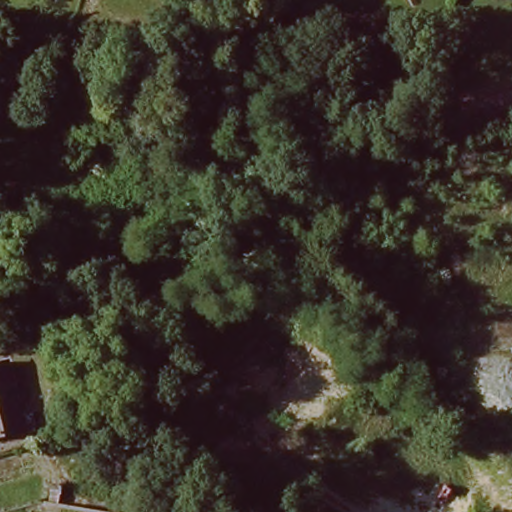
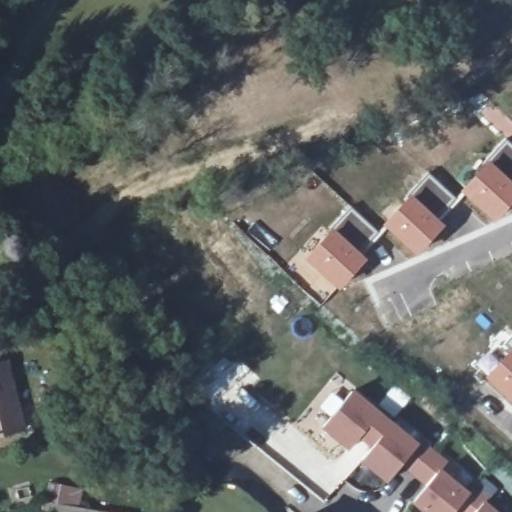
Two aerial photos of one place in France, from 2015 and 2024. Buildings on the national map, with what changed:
new [(486,159),(505,137),(478,112),(489,100),(512,122),(512,136),(508,140),(512,143),(512,181),(486,159)]
new [(486,159),(512,181),(512,203),(495,223),(459,192),(486,159)]
new [(428,172),(459,199),(440,220),(409,193),(428,172)]
new [(409,193),(440,220),(446,225),(418,257),(383,225),(409,193)]
new [(349,207),(379,232),(361,253),(331,227),(349,207)]
new [(331,227),(361,253),(367,258),(339,291),(303,260),(331,227)]
new [(512,345),(512,404),(482,376),(512,345)]
unchanged [(0,436),(0,368),(18,432),(0,436)]
new [(351,392),(416,443),(447,467),(443,473),(468,492),(472,488),(485,500),(482,503),(492,512),(456,512),(455,511),(454,512),(425,512),(413,502),(425,485),(402,464),(387,481),(361,457),(371,445),(361,437),(351,448),(323,428),(351,392)]

